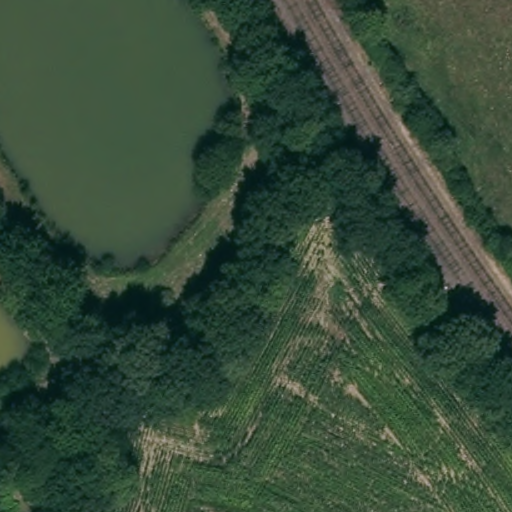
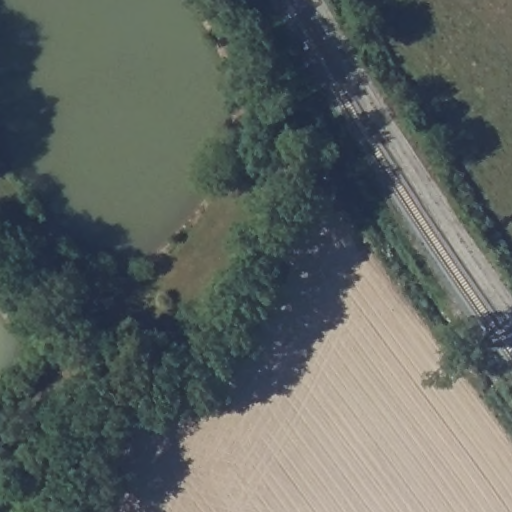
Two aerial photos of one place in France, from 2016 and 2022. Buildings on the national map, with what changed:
unchanged [(265,244),(210,344),(188,334),(243,235),(265,244)]

